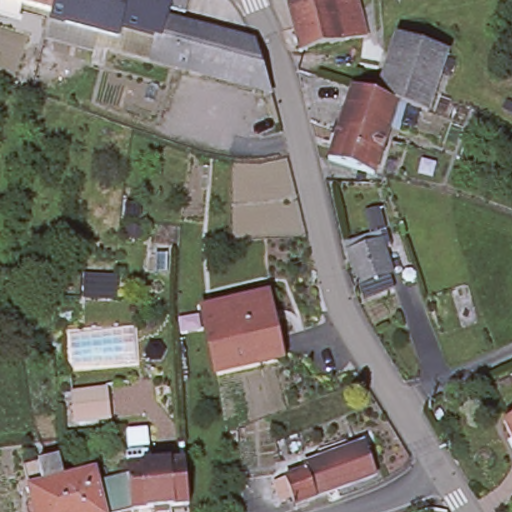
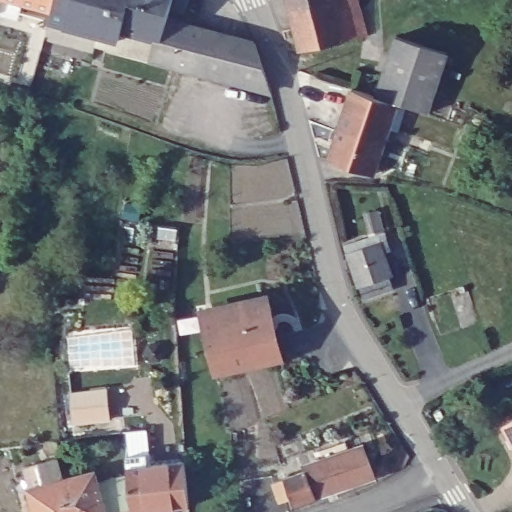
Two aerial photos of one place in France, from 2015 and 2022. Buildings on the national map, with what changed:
unchanged [(11,0),(50,0),(47,10),(11,0)]
unchanged [(49,29),(54,12),(47,10),(50,0),(184,0),(180,13),(165,9),(162,20),(157,40),(150,38),(122,30),(117,48),(92,41),(49,29)]
unchanged [(295,51),(283,0),(331,0),(340,40),(295,51)]
unchanged [(340,40),(331,0),(354,0),(363,35),(340,40)]
unchanged [(157,40),(162,20),(247,42),(251,43),(264,85),(266,91),(145,59),(150,38),(157,40)]
unchanged [(443,52),(423,113),(393,103),(372,95),(392,35),(443,52)]
unchanged [(372,95),(393,103),(369,174),(323,159),(348,88),(372,95)]
unchanged [(362,218),(360,209),(375,205),(380,223),(370,225),(365,227),(362,218)]
unchanged [(343,247),(349,245),(347,239),(357,237),(374,230),(387,269),(385,269),(389,283),(373,288),(359,293),(343,247)]
unchanged [(236,368),(217,372),(203,311),(262,298),(267,296),(275,328),(277,341),(281,357),(236,368)]
unchanged [(69,393),(108,391),(110,426),(71,428),(69,393)]
unchanged [(440,410),(445,417),(439,420),(435,413),(440,410)]
unchanged [(512,425),(512,445),(504,429),(512,425)]
unchanged [(307,477),(304,471),(364,449),(375,481),(317,502),(294,510),(292,504),(280,508),(273,488),(285,484),(307,477)]
unchanged [(59,484),(90,476),(93,487),(124,481),(123,472),(122,461),(145,459),(147,469),(180,466),(184,511),(167,512),(28,512),(23,493),(18,472),(34,468),(54,463),(59,484)]

